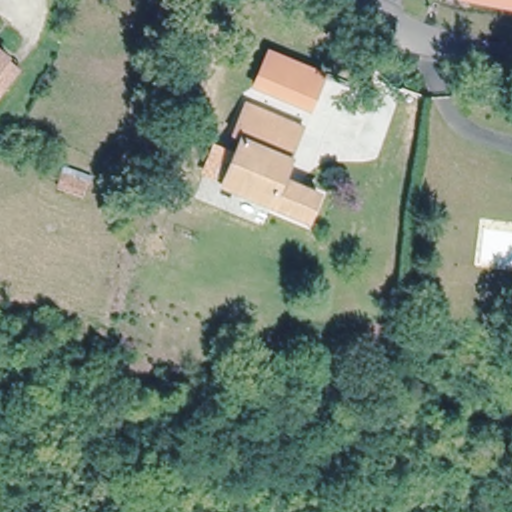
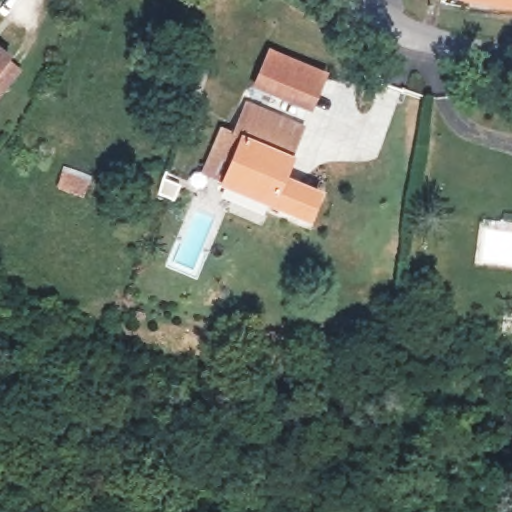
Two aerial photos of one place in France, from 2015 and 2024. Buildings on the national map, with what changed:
unchanged [(471,0),(512,0),(512,8),(471,0)]
unchanged [(267,47),(327,72),(310,113),(250,87),(267,47)]
unchanged [(8,61),(0,71),(0,49),(10,58),(8,61)]
unchanged [(21,71),(0,96),(0,71),(8,61),(21,71)]
unchanged [(240,152),(244,143),(235,140),(250,108),(297,129),(291,143),(298,146),(290,163),(281,184),(320,201),(308,227),(224,190),(225,185),(240,152)]
unchanged [(212,142),(240,152),(225,185),(199,174),(212,142)]

